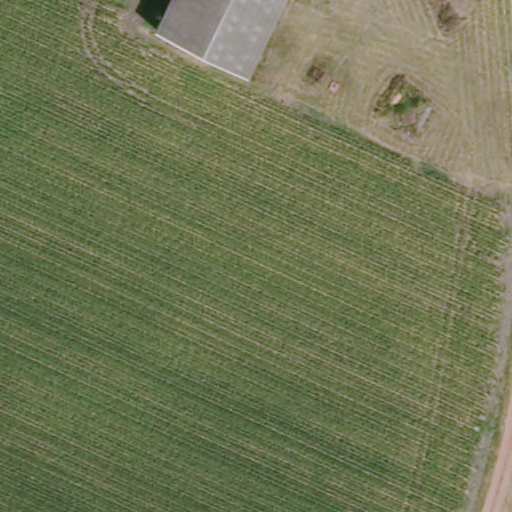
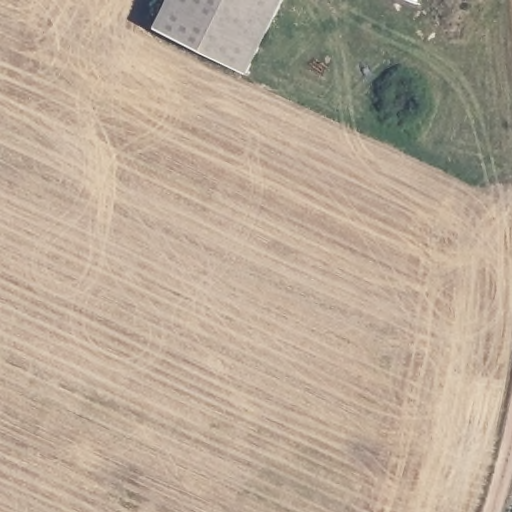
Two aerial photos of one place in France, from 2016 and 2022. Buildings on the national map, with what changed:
unchanged [(159,28),(173,0),(286,0),(248,74),(159,28)]

